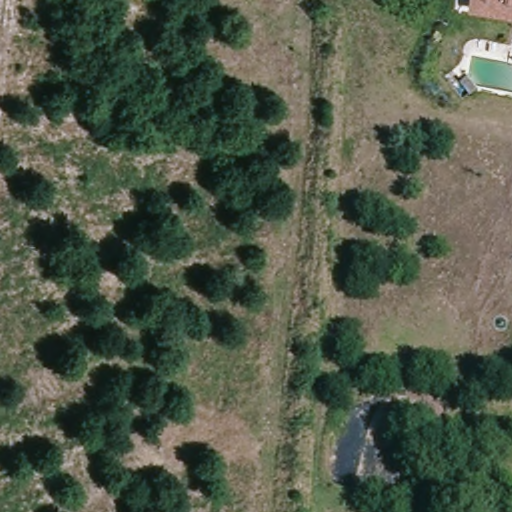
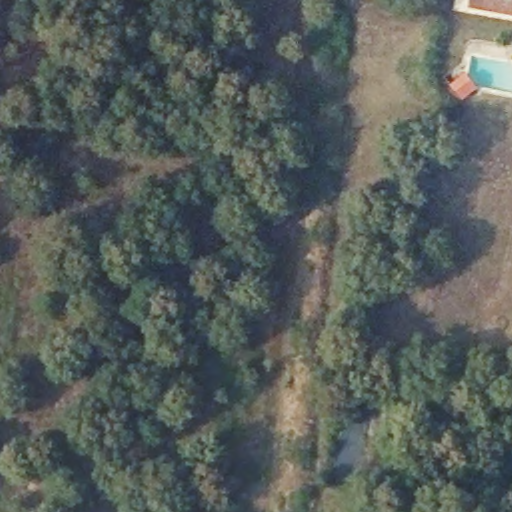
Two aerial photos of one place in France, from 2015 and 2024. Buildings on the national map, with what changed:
unchanged [(472,0),(512,0),(512,13),(470,7),(472,0)]

